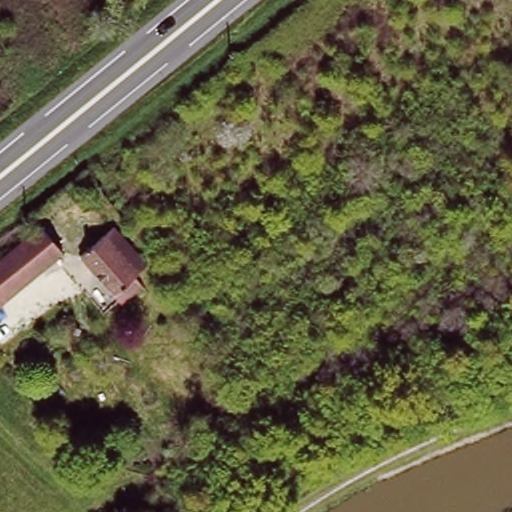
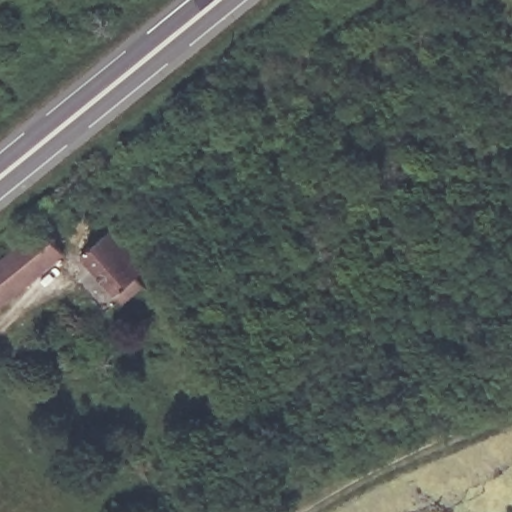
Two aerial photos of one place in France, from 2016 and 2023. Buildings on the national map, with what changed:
unchanged [(63,257),(0,308),(0,255),(36,225),(63,257)]
unchanged [(141,266),(131,276),(143,289),(123,308),(79,262),(109,233),(141,266)]

